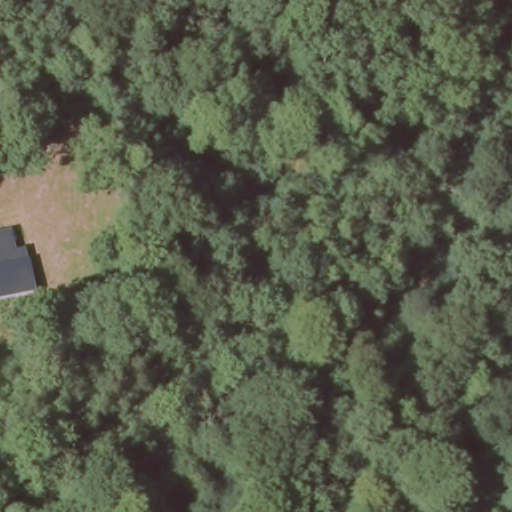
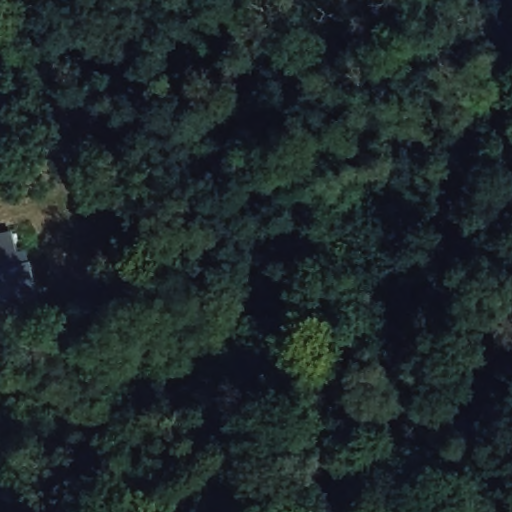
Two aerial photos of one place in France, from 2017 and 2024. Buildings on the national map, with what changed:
unchanged [(21,260),(0,264),(0,232),(16,228),(21,260)]

